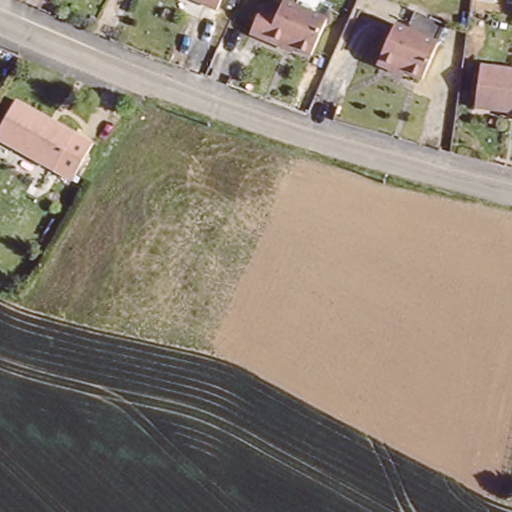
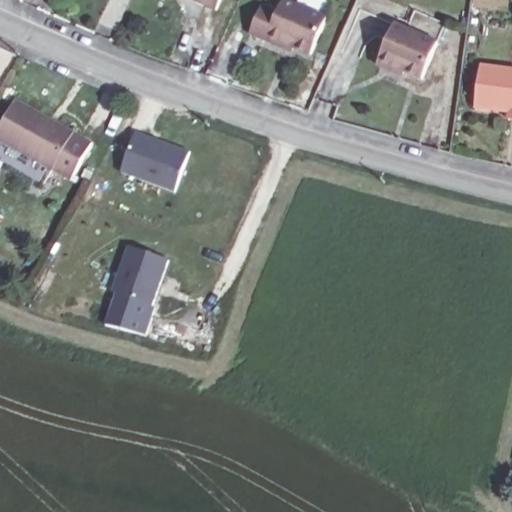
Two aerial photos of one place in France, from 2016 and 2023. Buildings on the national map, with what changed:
unchanged [(193,0),(218,0),(213,10),(193,0)]
unchanged [(280,12),(286,0),(301,7),(329,20),(312,56),(285,45),(284,49),(251,34),(263,6),(280,12)]
unchanged [(408,31),(439,46),(424,82),(398,71),(395,76),(378,68),(397,26),(408,31)]
unchanged [(512,71),(512,115),(473,108),(479,65),(512,71)]
unchanged [(21,105),(95,146),(75,182),(1,141),(21,105)]
new [(137,134),(190,152),(176,192),(121,173),(137,134)]
new [(129,247),(169,260),(144,337),(105,325),(129,247)]

